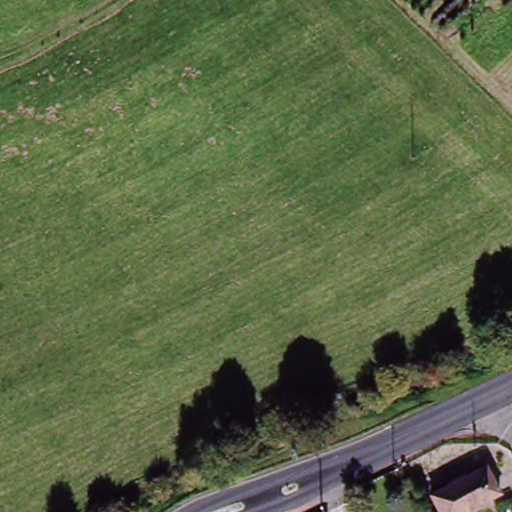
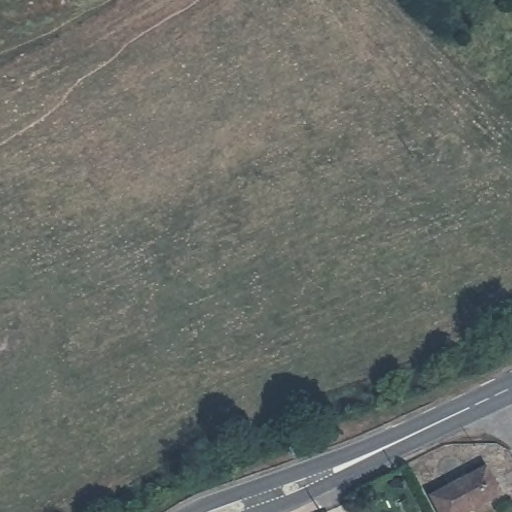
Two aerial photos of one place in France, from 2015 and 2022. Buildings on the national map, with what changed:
unchanged [(436,499),(486,473),(499,498),(471,512),(443,512),(436,499)]

